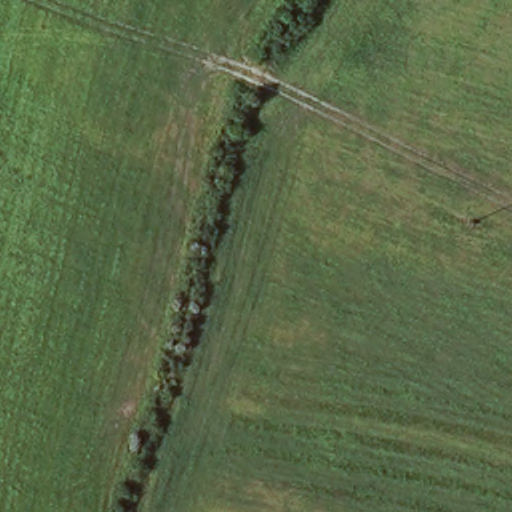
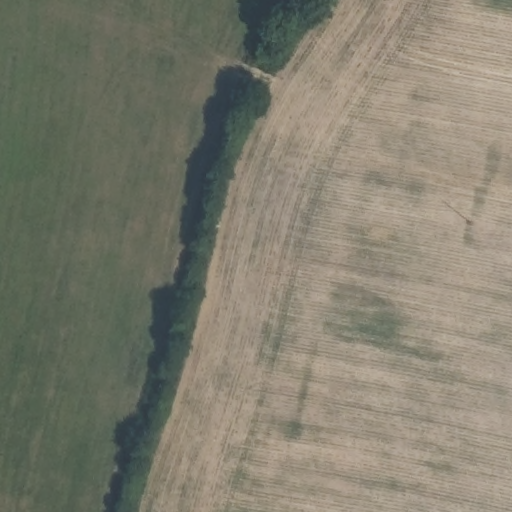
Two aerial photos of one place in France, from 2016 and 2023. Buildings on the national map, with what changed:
[]

